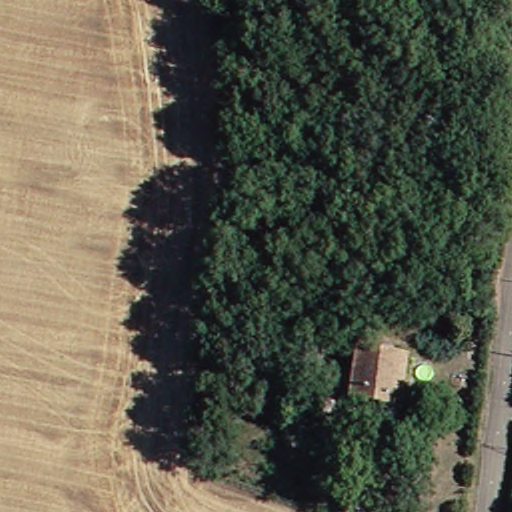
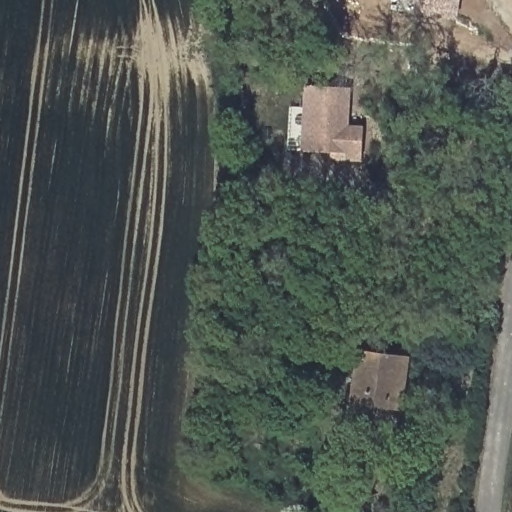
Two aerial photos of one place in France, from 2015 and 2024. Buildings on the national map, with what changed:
new [(462,0),(459,19),(401,10),(402,0),(462,0)]
new [(307,85),(349,89),(348,128),(363,129),(362,153),(304,152),(307,85)]
unchanged [(411,407),(361,402),(363,367),(364,348),(414,353),(413,372),(411,407)]

